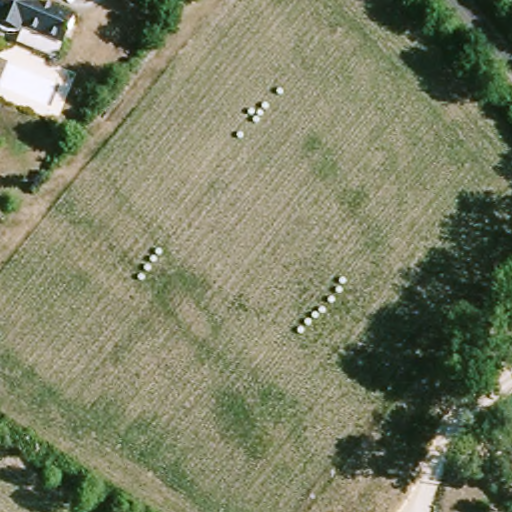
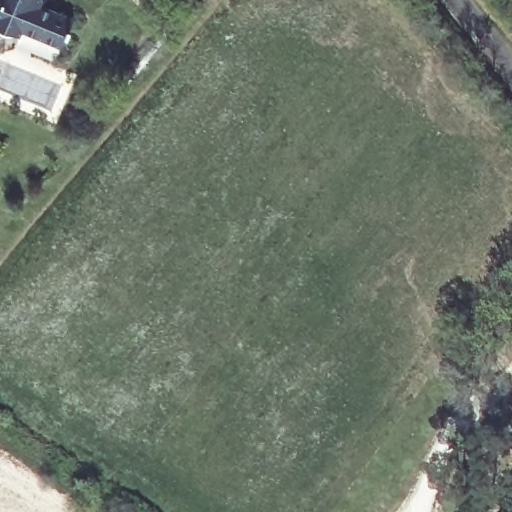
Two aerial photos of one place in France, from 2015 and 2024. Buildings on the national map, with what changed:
unchanged [(45,12),(72,21),(62,48),(23,32),(20,36),(8,40),(0,35),(0,0),(41,0),(45,12)]

